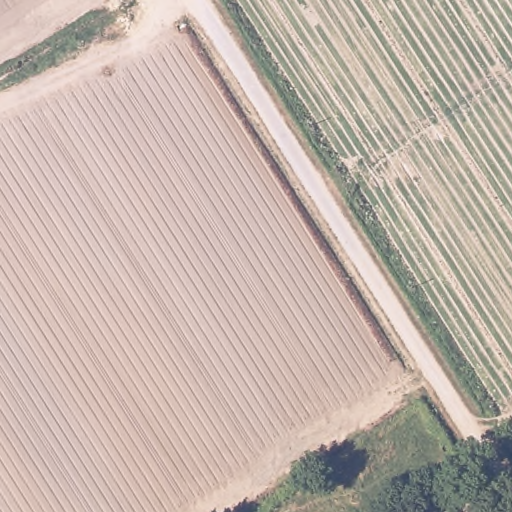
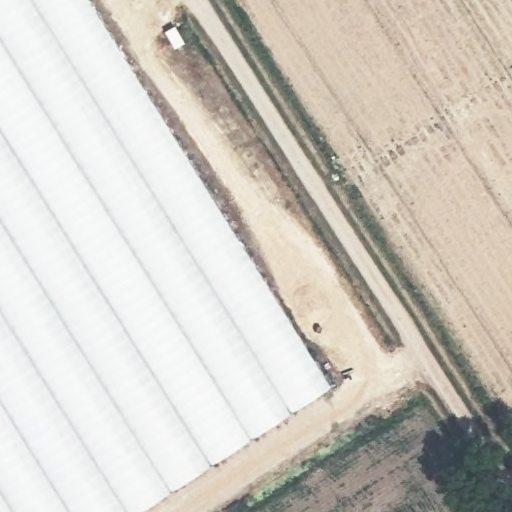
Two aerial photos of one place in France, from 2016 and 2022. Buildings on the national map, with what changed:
new [(329,387),(139,512),(0,512),(0,0),(88,0),(329,387)]

